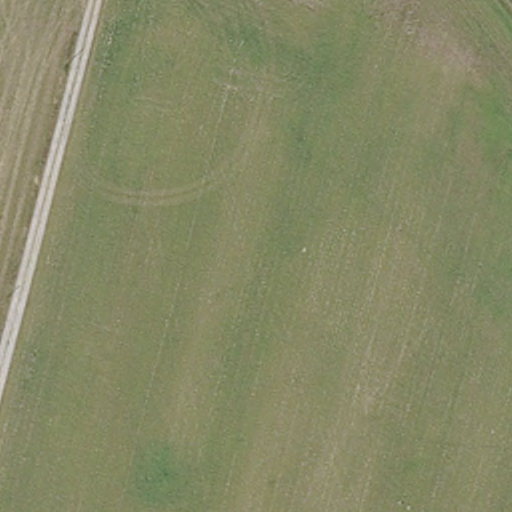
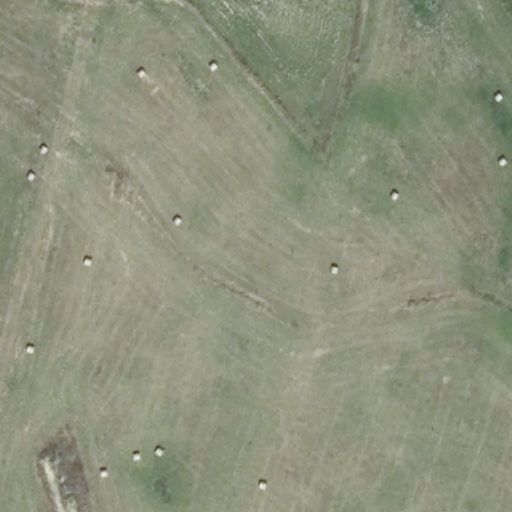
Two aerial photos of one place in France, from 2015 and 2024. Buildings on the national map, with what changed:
[]

